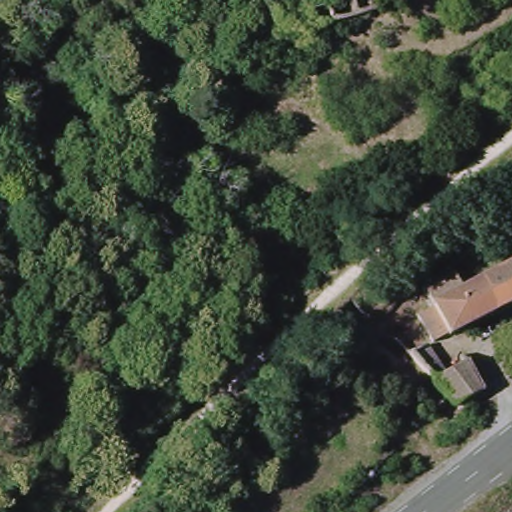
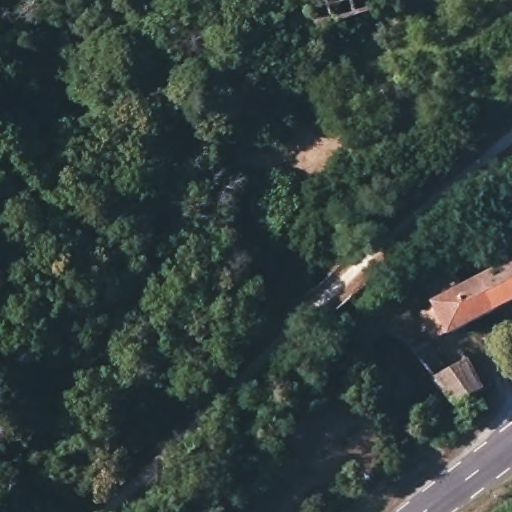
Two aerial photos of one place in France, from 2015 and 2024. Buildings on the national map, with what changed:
unchanged [(356,0),(379,0),(381,14),(359,14),(356,0)]
unchanged [(512,266),(512,304),(507,306),(491,276),(512,266)]
unchanged [(507,306),(456,333),(429,287),(463,268),(473,285),(491,276),(507,306)]
unchanged [(489,392),(462,407),(434,364),(427,355),(437,349),(449,370),(472,358),(489,392)]

